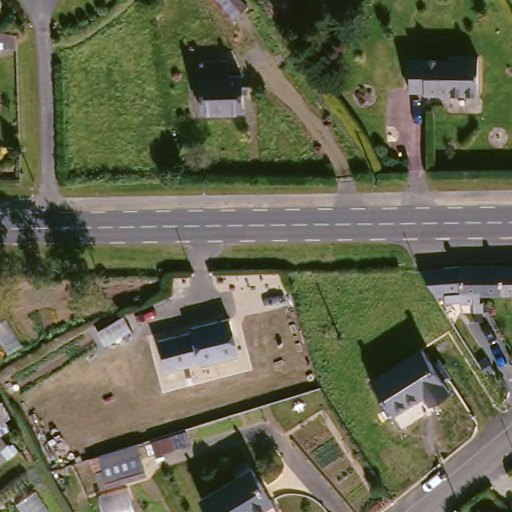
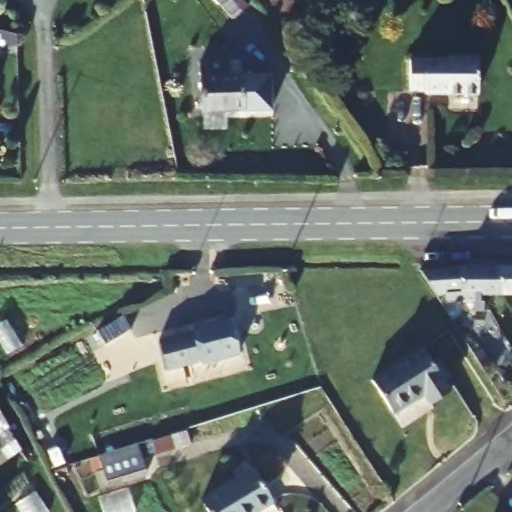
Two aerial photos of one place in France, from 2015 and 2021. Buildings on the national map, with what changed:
unchanged [(229,21),(208,0),(235,0),(242,7),(229,21)]
unchanged [(18,50),(0,45),(0,31),(18,36),(18,50)]
unchanged [(423,101),(423,97),(406,98),(405,66),(446,64),(446,60),(473,59),(475,99),(423,101)]
unchanged [(230,67),(230,82),(240,82),(240,91),(243,91),(243,100),(240,100),(240,115),(202,115),(203,67),(230,67)]
unchanged [(461,302),(462,294),(428,292),(414,274),(494,274),(493,295),(479,295),(479,303),(461,302)]
unchanged [(510,296),(493,295),(494,274),(512,274),(512,308),(510,307),(510,296)]
unchanged [(197,370),(196,368),(163,375),(156,345),(186,338),(185,334),(224,326),(231,364),(197,370)]
unchanged [(423,345),(457,385),(439,400),(431,391),(403,414),(377,384),(423,345)]
unchanged [(130,475),(96,481),(93,467),(127,461),(130,475)]
unchanged [(247,512),(205,512),(195,494),(246,471),(263,504),(247,512)]

